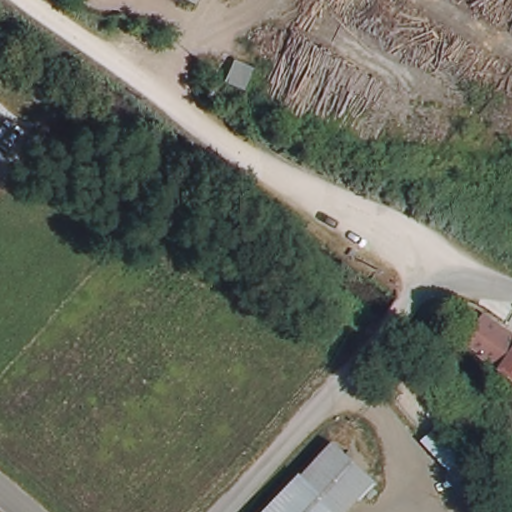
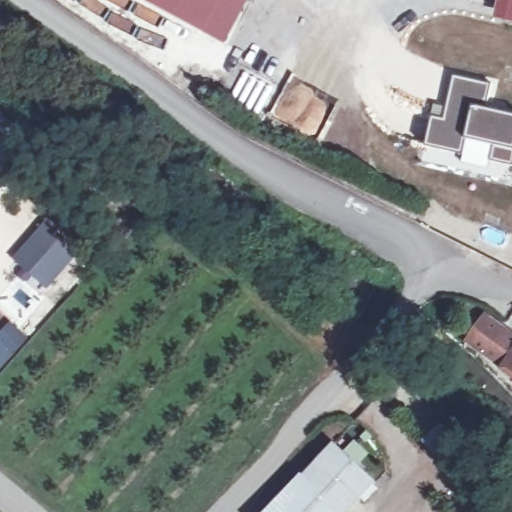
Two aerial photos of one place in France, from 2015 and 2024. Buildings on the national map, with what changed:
new [(227,46),(142,0),(252,0),(227,46)]
demolished [(200,1),(198,0),(200,0),(200,1)]
new [(495,17),(500,0),(512,0),(512,21),(495,17)]
new [(491,86),(485,108),(512,115),(512,165),(492,161),(495,145),(468,138),(463,154),(427,144),(433,117),(445,120),(456,77),(491,86)]
new [(46,222),(81,252),(48,290),(15,259),(46,222)]
unchanged [(464,338),(480,316),(512,338),(512,374),(464,338)]
unchanged [(341,512),(265,512),(334,440),(374,477),(341,512)]
unchanged [(470,455),(493,493),(475,505),(470,494),(460,501),(444,470),(470,455)]

